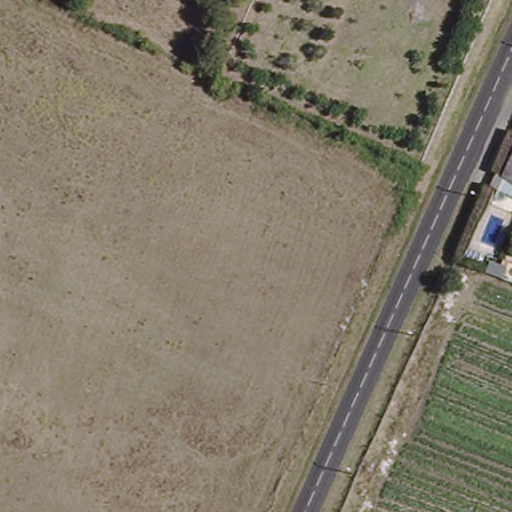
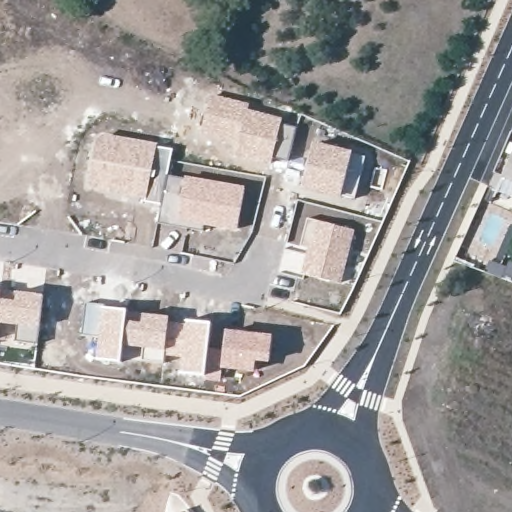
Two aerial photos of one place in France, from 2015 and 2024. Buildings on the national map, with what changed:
new [(288,161),(273,158),(270,170),(232,157),(234,146),(199,135),(210,93),(250,103),(249,108),(284,117),(282,122),(298,126),(288,161)]
new [(147,201),(85,189),(97,132),(159,143),(158,145),(174,148),(168,176),(165,191),(179,194),(183,175),(246,186),(238,231),(158,221),(162,205),(147,201)]
new [(355,200),(342,198),(302,187),(315,141),(353,151),(367,155),(355,200)]
unchanged [(500,172),(512,143),(512,192),(487,182),(493,169),(500,172)]
new [(308,241),(310,218),(356,230),(341,284),(300,273),(308,241)]
unchanged [(492,259),(503,263),(506,258),(512,261),(512,280),(487,271),(492,259)]
new [(45,294),(37,346),(15,344),(17,327),(0,325),(0,289),(4,290),(45,294)]
new [(85,302),(129,309),(128,320),(125,346),(122,363),(94,359),(97,338),(80,335),(85,302)]
new [(128,320),(140,321),(140,313),(170,316),(170,320),(166,356),(165,364),(142,361),(143,349),(125,346),(128,320)]
new [(170,320),(212,323),(205,379),(180,373),(180,358),(166,356),(170,320)]
new [(225,329),(273,335),(270,363),(257,362),(255,373),(220,369),(225,329)]

